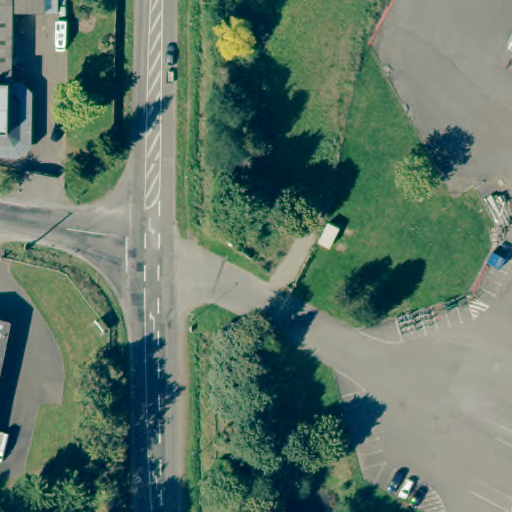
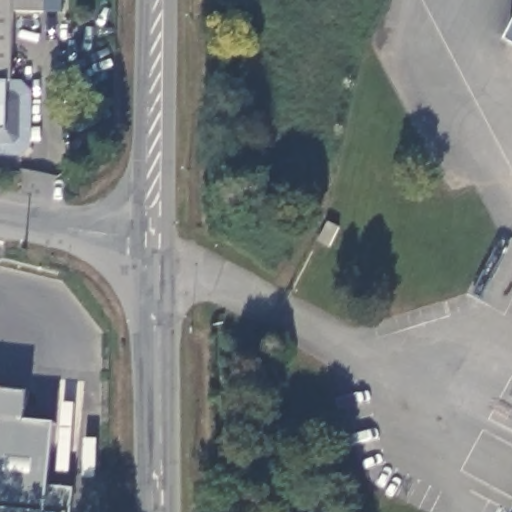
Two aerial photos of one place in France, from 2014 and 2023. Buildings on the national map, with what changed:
unchanged [(43,12),(14,11),(14,81),(29,82),(34,93),(33,142),(25,154),(0,154),(0,0),(43,0),(43,12)]
unchanged [(508,41),(512,34),(512,44),(508,41)]
demolished [(0,317),(13,319),(0,382),(0,317)]
new [(25,422),(55,424),(49,487),(74,491),(72,512),(19,512),(0,510),(0,391),(28,393),(25,422)]

